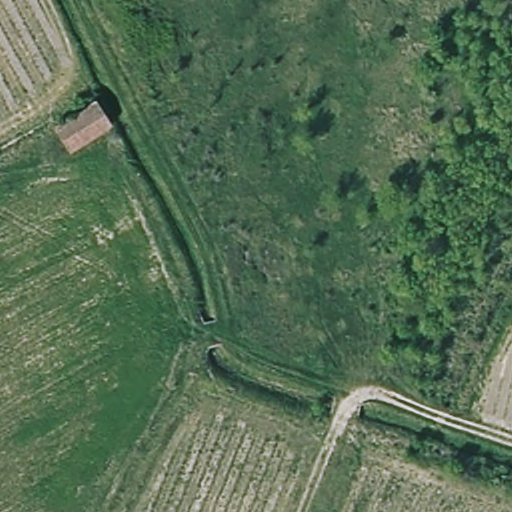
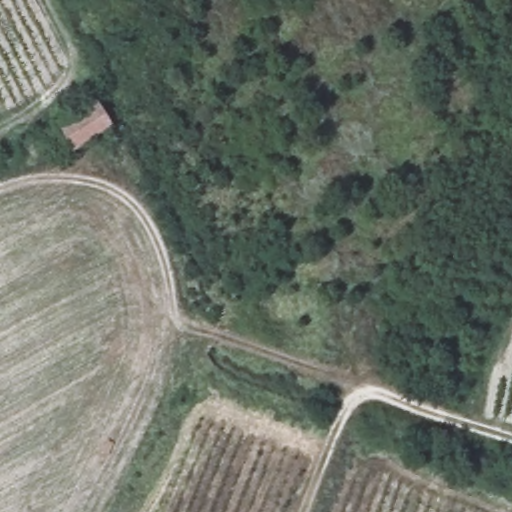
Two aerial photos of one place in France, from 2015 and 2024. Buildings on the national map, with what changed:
unchanged [(98,101),(109,125),(68,148),(57,125),(98,101)]

